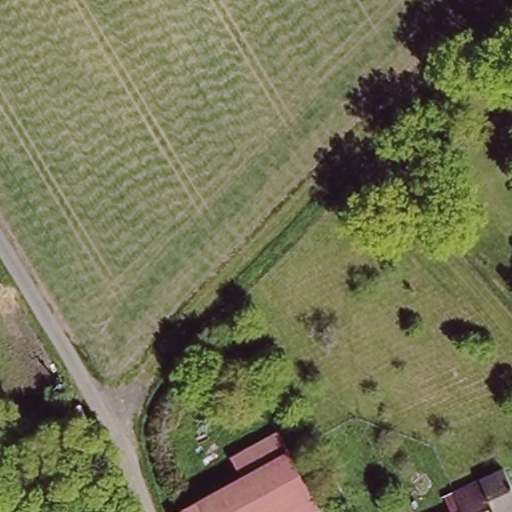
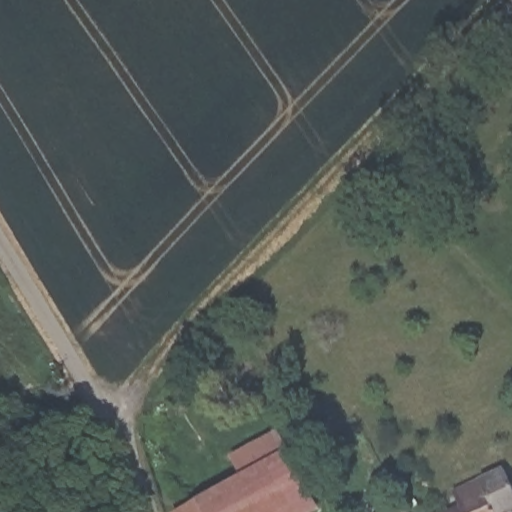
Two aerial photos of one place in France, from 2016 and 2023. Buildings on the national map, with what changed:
unchanged [(232,460),(275,438),(314,512),(188,512),(245,481),(232,460)]
unchanged [(503,473),(512,493),(512,512),(453,512),(447,497),(503,473)]

